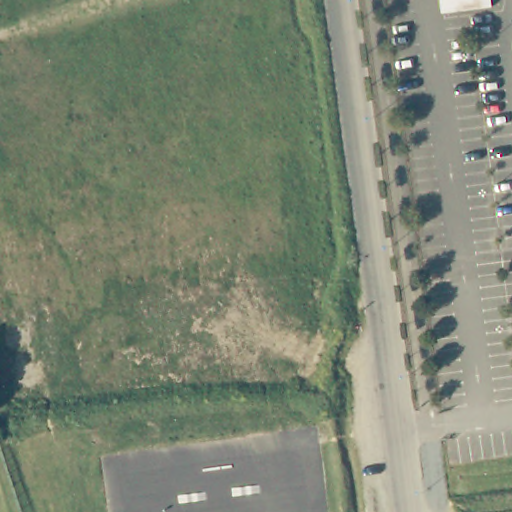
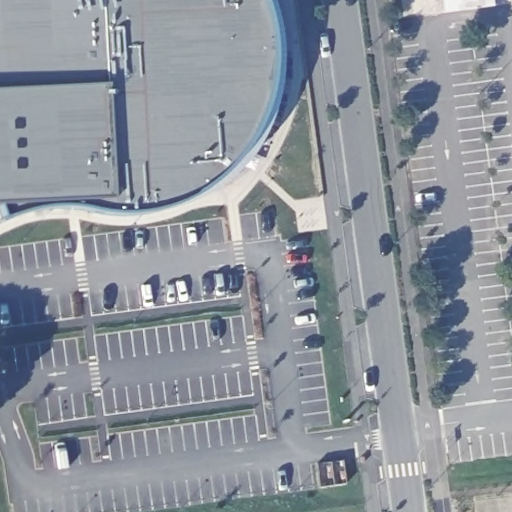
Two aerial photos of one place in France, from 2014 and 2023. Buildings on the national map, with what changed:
new [(278,22),(281,53),(278,85),(267,122),(246,161),(220,186),(177,209),(127,215),(90,211),(62,206),(34,210),(3,220),(0,213),(0,0),(270,0),(278,22)]
unchanged [(438,12),(437,0),(490,0),(490,7),(438,12)]

